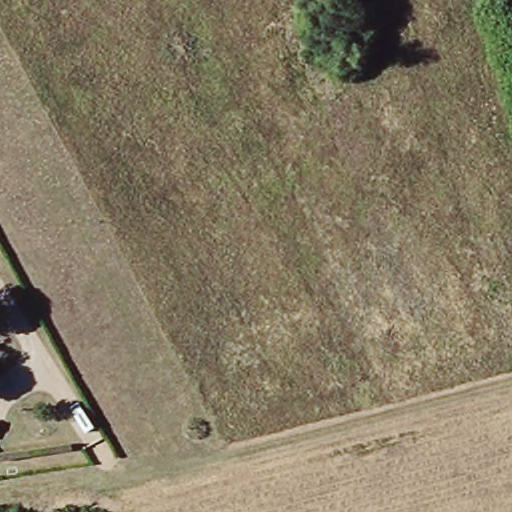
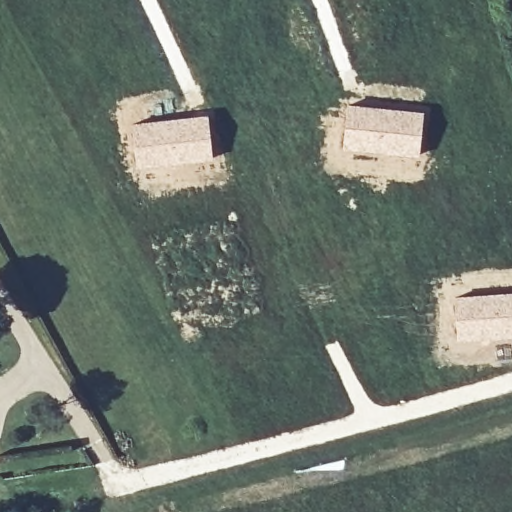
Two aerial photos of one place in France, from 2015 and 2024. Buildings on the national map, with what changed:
new [(345,102),(424,110),(419,155),(341,147),(345,102)]
new [(207,113),(213,158),(135,166),(131,122),(207,113)]
new [(512,335),(456,340),(453,294),(512,291),(512,335)]

